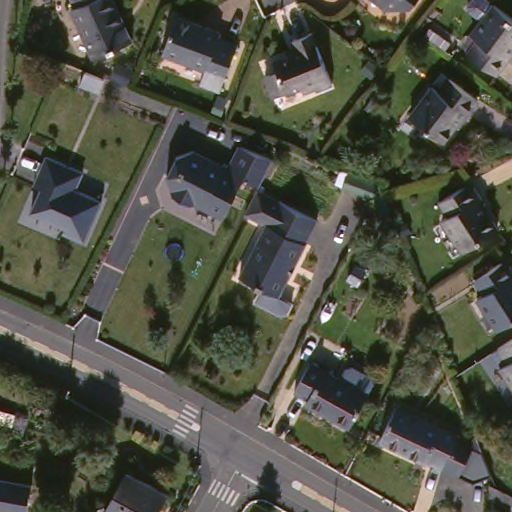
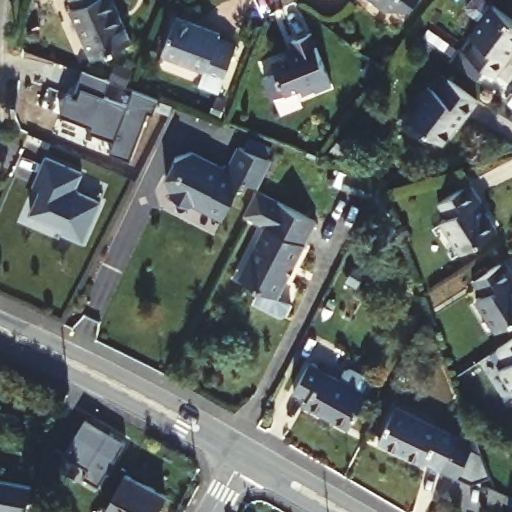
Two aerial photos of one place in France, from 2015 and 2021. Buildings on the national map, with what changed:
unchanged [(72,19),(77,16),(70,0),(105,0),(107,3),(111,1),(132,49),(94,67),(72,19)]
unchanged [(419,8),(397,12),(380,0),(425,0),(419,8)]
unchanged [(504,72),(475,50),(486,36),(479,31),(490,17),(477,7),(476,2),(478,0),(500,0),(502,1),(512,9),(512,62),(504,72)]
unchanged [(173,14),(217,31),(215,36),(233,43),(216,89),(195,81),(200,66),(159,51),(173,14)]
unchanged [(284,57),(308,49),(303,34),(322,28),(340,82),(327,87),(327,85),(312,90),(310,85),(283,94),(276,72),(288,68),(284,57)]
unchanged [(357,72),(366,62),(376,70),(367,80),(357,72)]
new [(114,141),(90,130),(91,125),(61,114),(69,94),(73,96),(84,71),(110,82),(102,97),(127,107),(135,91),(159,101),(154,114),(150,112),(131,159),(112,151),(114,141)]
demolished [(101,92),(82,85),(87,71),(106,78),(101,92)]
unchanged [(436,89),(443,94),(452,82),(482,104),(472,118),(467,114),(447,144),(413,120),(436,89)]
unchanged [(246,186),(227,226),(197,211),(194,212),(176,203),(162,196),(169,183),(184,178),(179,164),(184,153),(195,159),(231,177),(245,150),(276,166),(271,175),(262,193),(262,194),(246,186)]
unchanged [(87,173),(80,190),(107,201),(89,243),(68,234),(71,228),(36,213),(51,179),(43,176),(51,158),(87,173)]
unchanged [(372,195),(342,183),(347,170),(378,181),(372,195)]
unchanged [(452,219),(442,204),(472,183),(484,200),(481,203),(501,232),(466,257),(443,225),(452,219)]
unchanged [(262,193),(322,224),(299,269),(297,268),(292,278),(294,279),(283,301),(244,281),(271,228),(250,218),(262,194),(262,193)]
unchanged [(482,293),(473,277),(505,258),(512,271),(512,275),(512,318),(495,328),(476,297),(482,293)]
unchanged [(496,367),(488,354),(487,354),(496,348),(512,338),(512,393),(496,367)]
unchanged [(300,396),(315,367),(372,399),(354,431),(310,407),(312,403),(300,396)]
unchanged [(407,416),(469,445),(454,477),(437,469),(436,473),(390,452),(407,416)]
new [(67,454),(87,419),(126,443),(100,485),(84,477),(89,468),(67,454)]
unchanged [(160,512),(108,512),(128,474),(169,496),(160,512)]
unchanged [(24,512),(16,512),(0,509),(0,479),(30,484),(24,512)]
unchanged [(512,501),(512,512),(508,512),(508,499),(512,501)]

